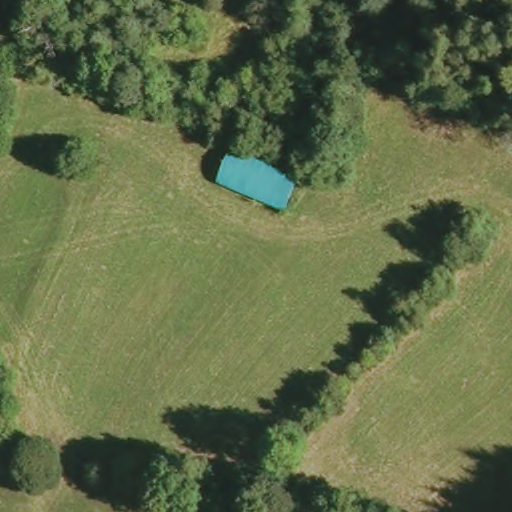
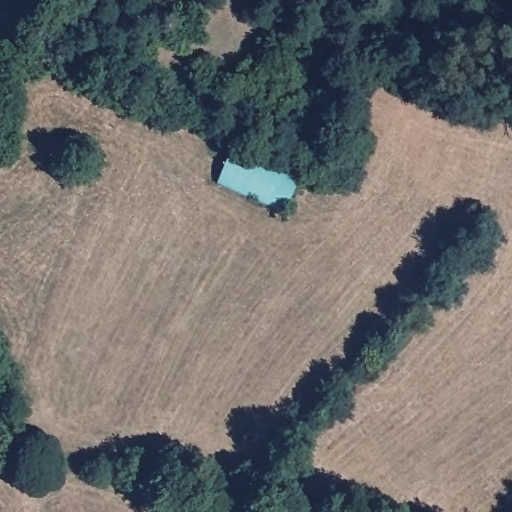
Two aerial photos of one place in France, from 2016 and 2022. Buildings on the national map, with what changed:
unchanged [(227,144),(295,172),(281,213),(215,184),(227,144)]

